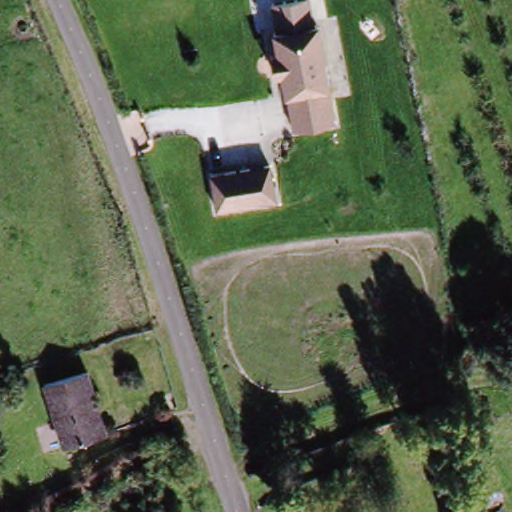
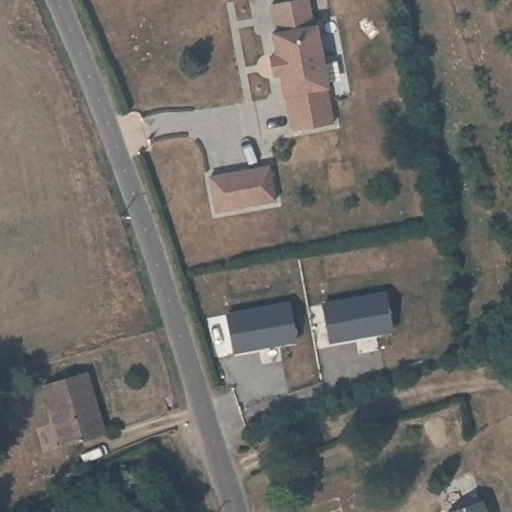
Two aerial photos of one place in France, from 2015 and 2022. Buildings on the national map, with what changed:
unchanged [(328,30),(343,124),(298,130),(281,37),(328,30)]
unchanged [(277,166),(282,201),(223,209),(218,176),(277,166)]
new [(326,303),(388,294),(393,332),(331,340),(326,303)]
new [(291,304),(298,340),(236,351),(229,315),(291,304)]
unchanged [(59,448),(37,387),(80,371),(91,401),(86,402),(96,433),(59,448)]
unchanged [(487,506),(489,512),(452,512),(487,506)]

